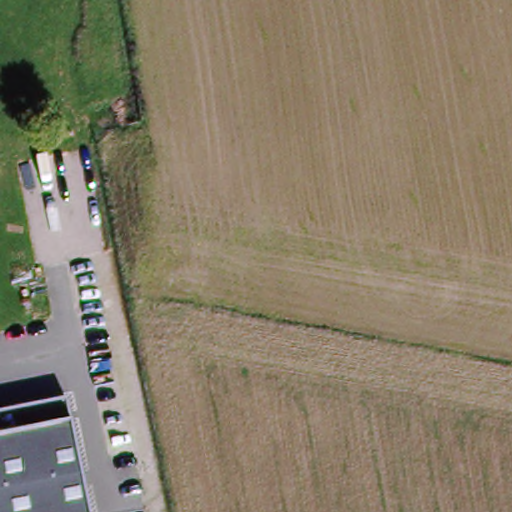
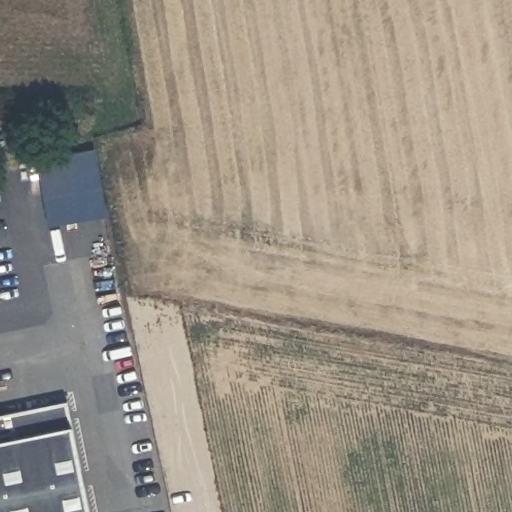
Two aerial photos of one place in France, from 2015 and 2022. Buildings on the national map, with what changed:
new [(109,214),(49,225),(35,160),(96,147),(109,214)]
unchanged [(88,512),(0,512),(0,413),(65,402),(88,512)]

